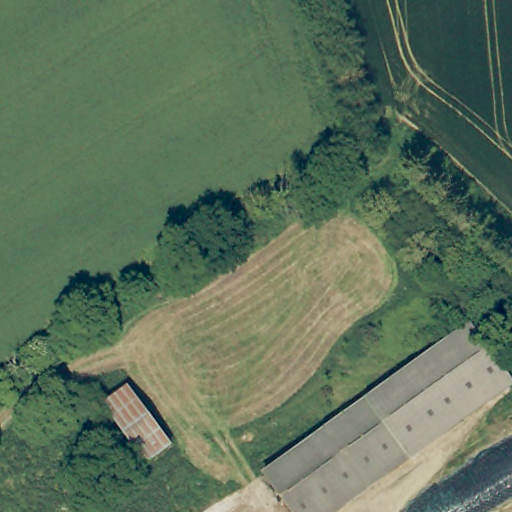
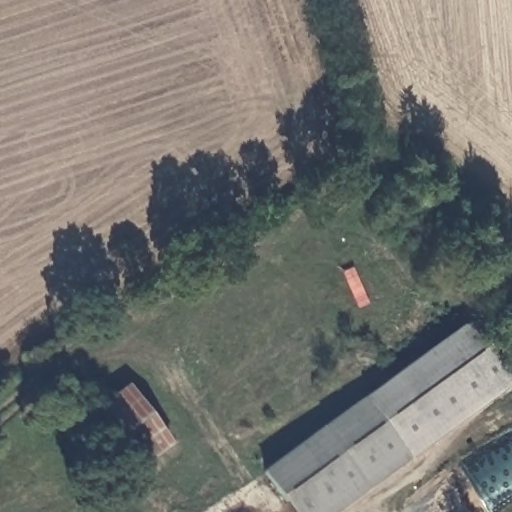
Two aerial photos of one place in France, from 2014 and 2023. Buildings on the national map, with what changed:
unchanged [(368,399),(471,322),(506,370),(402,447),(401,445),(368,399)]
unchanged [(170,445),(149,461),(106,404),(127,388),(170,445)]
unchanged [(314,512),(296,512),(265,475),(368,399),(401,445),(314,512)]

